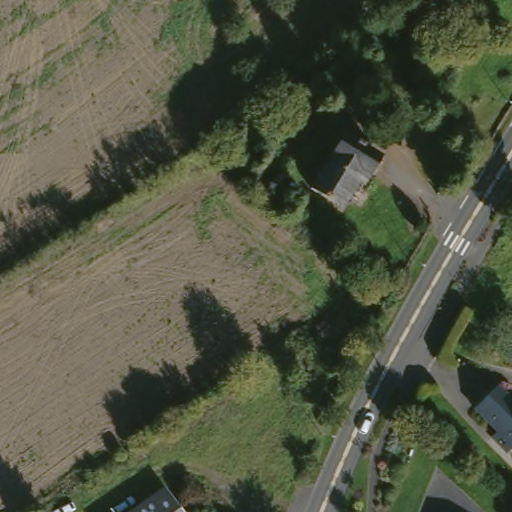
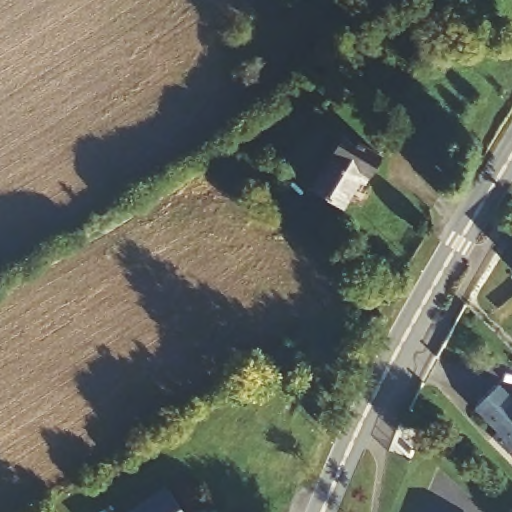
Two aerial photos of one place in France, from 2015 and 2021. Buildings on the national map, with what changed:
unchanged [(356,59),(368,75),(334,101),(322,84),(356,59)]
unchanged [(343,135),(381,157),(370,177),(363,173),(342,206),(312,189),(343,135)]
unchanged [(502,385),(512,395),(512,448),(498,434),(502,430),(480,408),(502,385)]
unchanged [(172,486),(189,512),(129,512),(172,486)]

